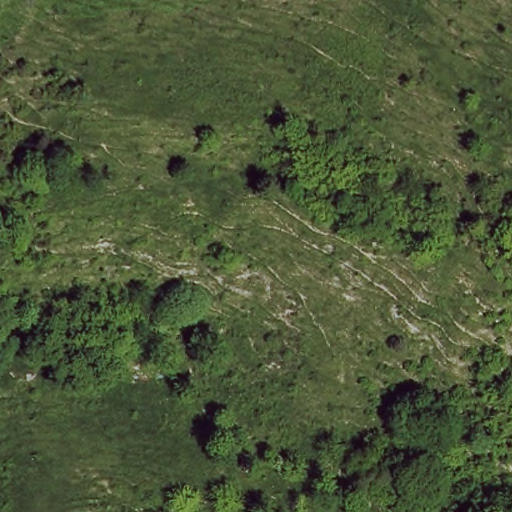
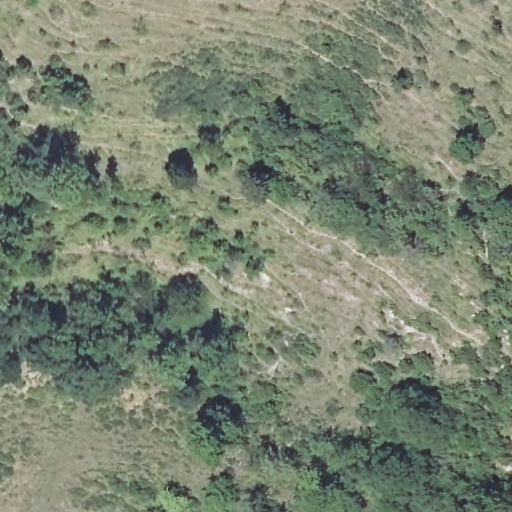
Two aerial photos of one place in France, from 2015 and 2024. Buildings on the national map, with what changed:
[]

